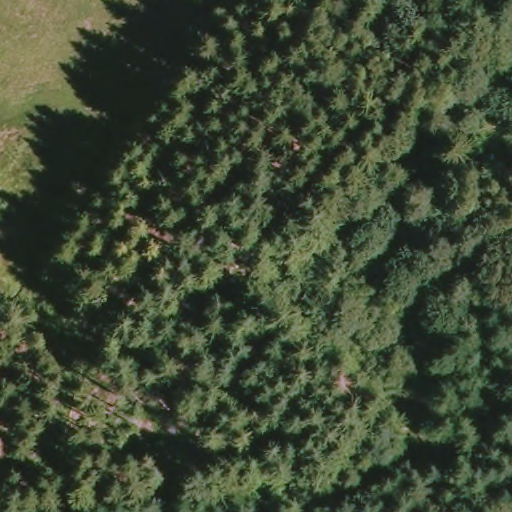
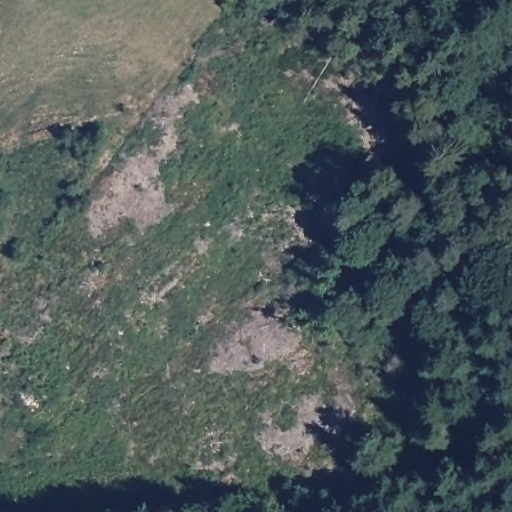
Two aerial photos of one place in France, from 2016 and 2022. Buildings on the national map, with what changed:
[]

